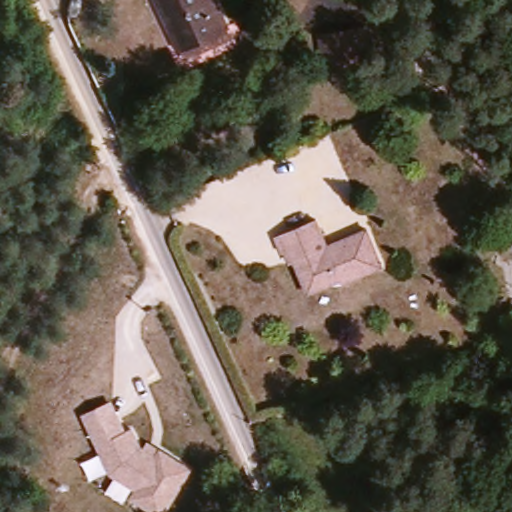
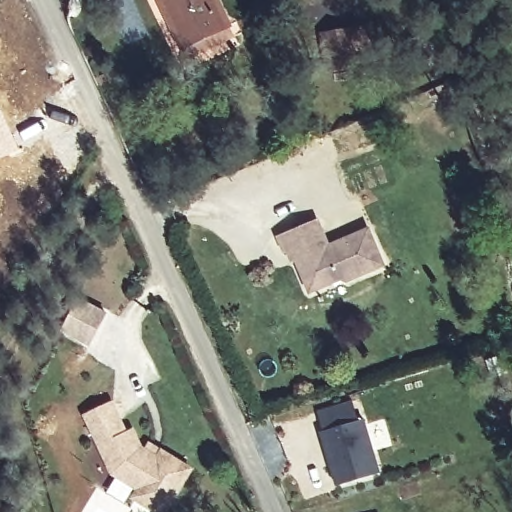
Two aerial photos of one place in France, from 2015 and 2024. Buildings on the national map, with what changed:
unchanged [(174,46),(156,0),(215,0),(226,25),(174,46)]
unchanged [(353,54),(317,62),(309,26),(345,18),(353,54)]
new [(20,149),(0,158),(0,106),(20,149)]
unchanged [(274,240),(313,221),(327,249),(366,230),(383,264),(348,282),(337,279),(313,292),(292,254),(283,258),(274,240)]
new [(78,300),(107,315),(90,346),(62,332),(78,300)]
unchanged [(132,499),(137,488),(113,474),(85,414),(115,399),(130,432),(137,427),(147,448),(151,441),(198,467),(170,512),(153,512),(132,499)]
new [(352,400),(358,421),(323,432),(317,412),(352,400)]
new [(363,419),(380,473),(337,486),(320,433),(363,419)]

